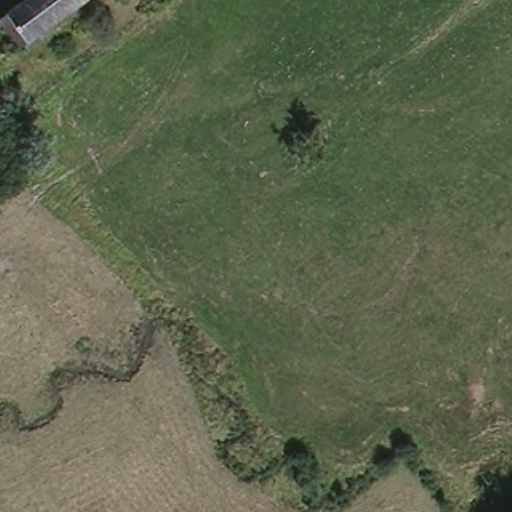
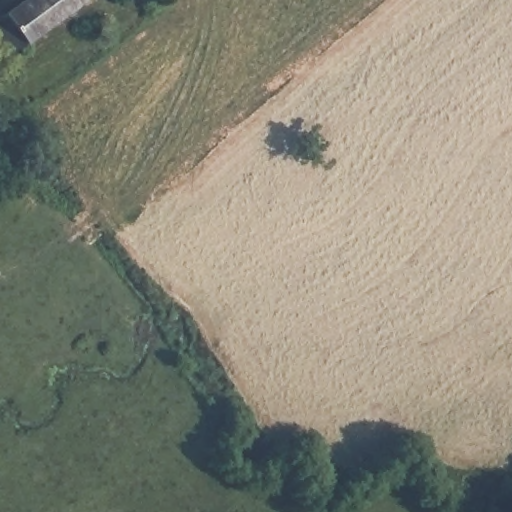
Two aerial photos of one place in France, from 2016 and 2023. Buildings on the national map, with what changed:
unchanged [(15,59),(0,42),(0,21),(29,0),(95,0),(15,59)]

